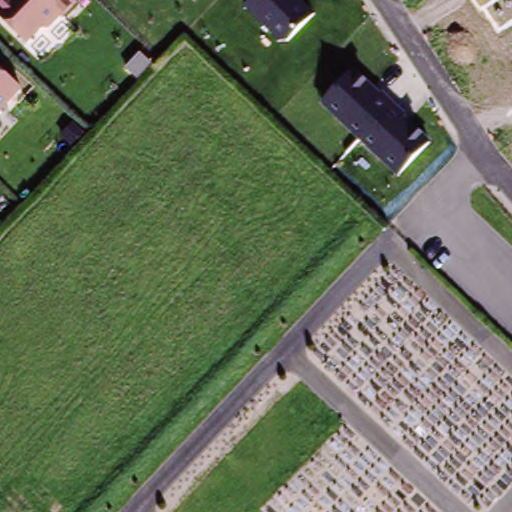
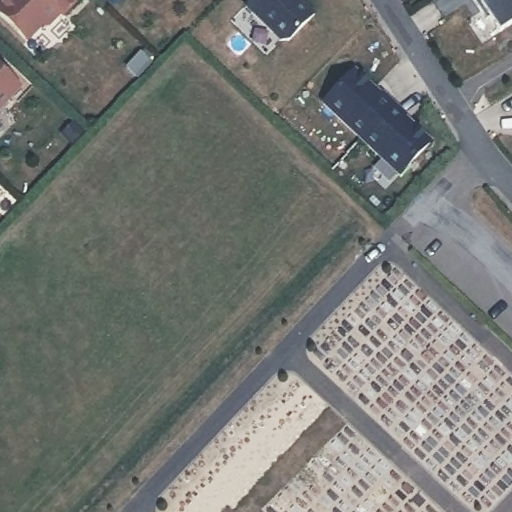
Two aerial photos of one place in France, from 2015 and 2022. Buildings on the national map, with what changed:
unchanged [(50,29),(42,30),(27,45),(0,21),(0,2),(2,0),(73,0),(75,2),(50,29)]
unchanged [(299,0),(313,14),(290,39),(280,40),(245,5),(251,0),(299,0)]
new [(478,0),(512,0),(512,24),(500,32),(478,0)]
unchanged [(22,90),(0,114),(0,70),(22,90)]
unchanged [(432,145),(398,179),(320,106),(352,72),(432,145)]

